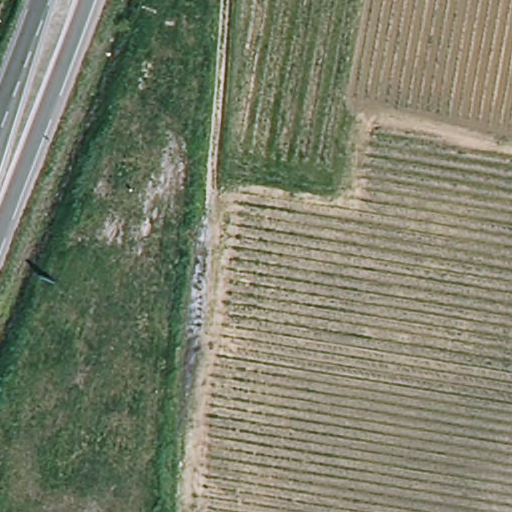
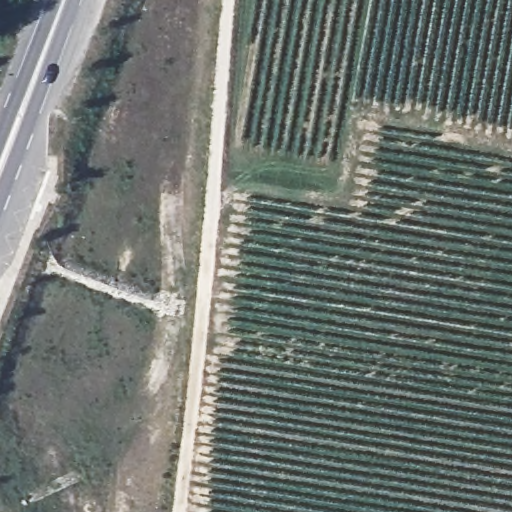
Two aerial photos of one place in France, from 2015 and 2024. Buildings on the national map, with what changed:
[]

